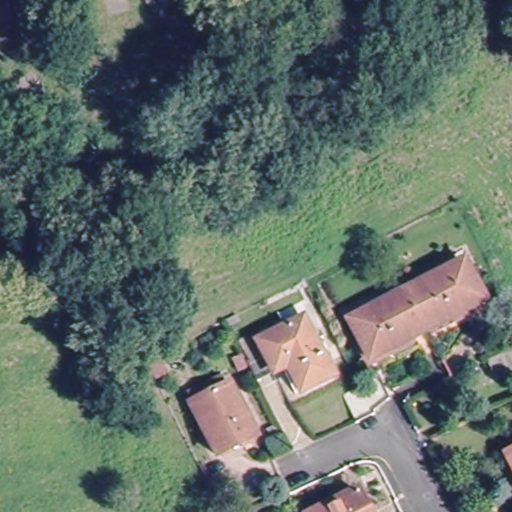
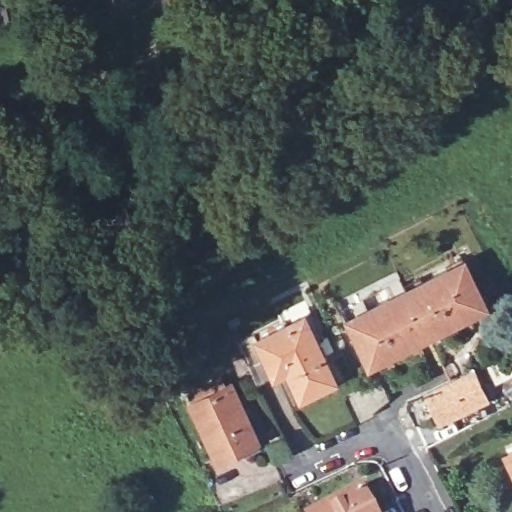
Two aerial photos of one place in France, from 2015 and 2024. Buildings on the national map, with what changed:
unchanged [(1,10),(0,3),(0,0),(18,0),(19,9),(1,10)]
unchanged [(351,327),(466,265),(487,305),(372,367),(351,327)]
unchanged [(276,328),(302,314),(317,343),(310,348),(330,384),(300,400),(286,374),(255,390),(235,351),(252,341),(276,328)]
unchanged [(512,354),(512,376),(500,381),(492,363),(512,354)]
new [(490,398),(440,423),(423,394),(475,369),(490,398)]
unchanged [(377,372),(392,399),(374,408),(377,414),(357,423),(342,396),(362,387),(359,381),(377,372)]
unchanged [(194,408),(234,387),(262,440),(222,461),(194,408)]
unchanged [(505,459),(512,455),(512,474),(505,459)]
unchanged [(355,494),(364,512),(320,512),(355,494)]

